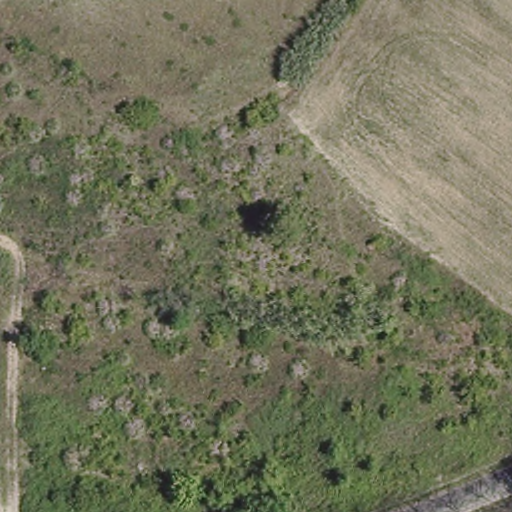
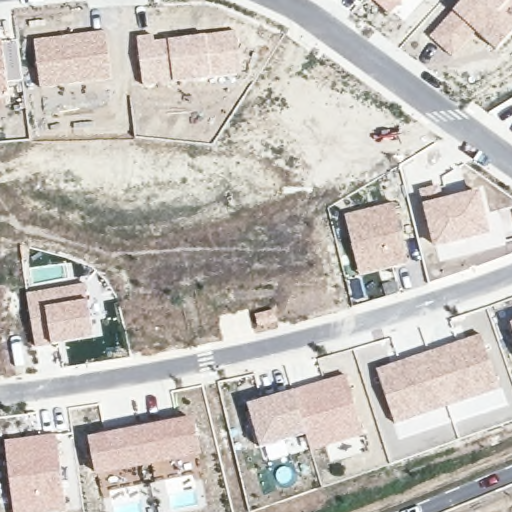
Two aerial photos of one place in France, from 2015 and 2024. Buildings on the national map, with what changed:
new [(388,16),(372,0),(402,0),(388,16)]
new [(512,30),(495,51),(475,34),(452,58),(428,37),(461,0),(512,0),(512,30)]
new [(105,30),(111,80),(40,89),(33,40),(105,30)]
new [(153,34),(154,40),(235,30),(240,72),(142,86),(135,37),(153,34)]
new [(1,38),(10,104),(0,106),(0,38),(1,38)]
new [(491,236),(433,249),(421,202),(417,190),(438,184),(441,197),(480,189),(491,236)]
new [(395,201),(408,263),(358,275),(343,214),(395,201)]
new [(85,282),(95,337),(34,347),(25,292),(85,282)]
new [(512,323),(512,326),(511,323),(512,323)]
new [(480,332),(500,388),(393,425),(375,368),(480,332)]
new [(345,373),(363,435),(310,450),(305,436),(260,447),(246,403),(345,373)]
new [(193,417),(201,457),(171,463),(151,467),(96,477),(87,437),(193,417)]
new [(66,511),(56,512),(12,512),(3,440),(56,434),(66,511)]

